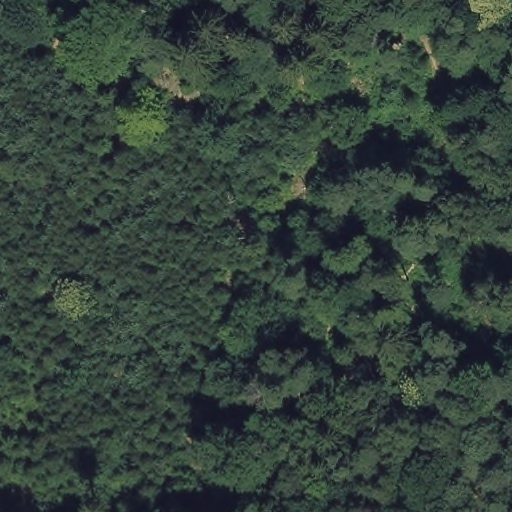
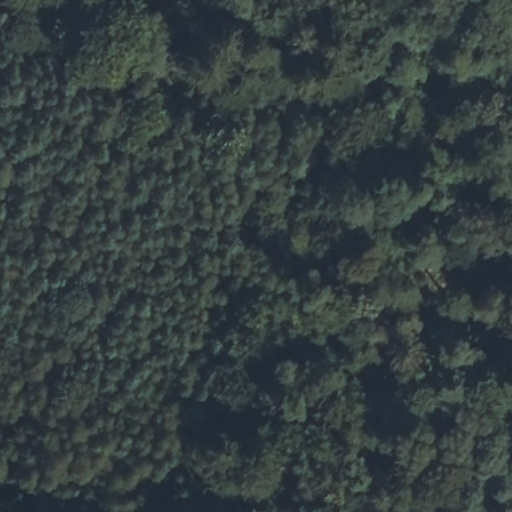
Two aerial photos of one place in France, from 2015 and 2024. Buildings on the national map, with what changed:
[]

